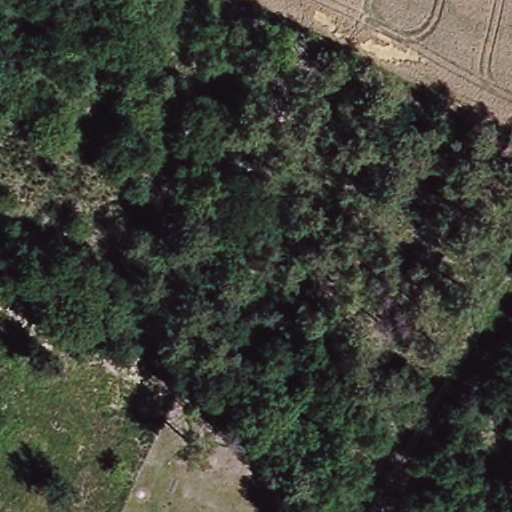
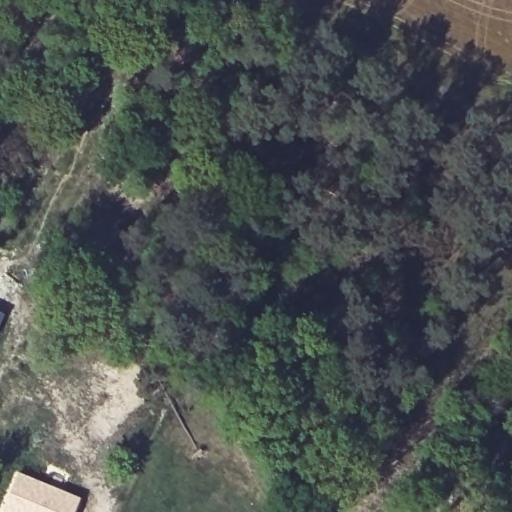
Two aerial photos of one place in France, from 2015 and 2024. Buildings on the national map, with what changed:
new [(15,470),(81,498),(75,512),(0,512),(0,505),(15,470)]

